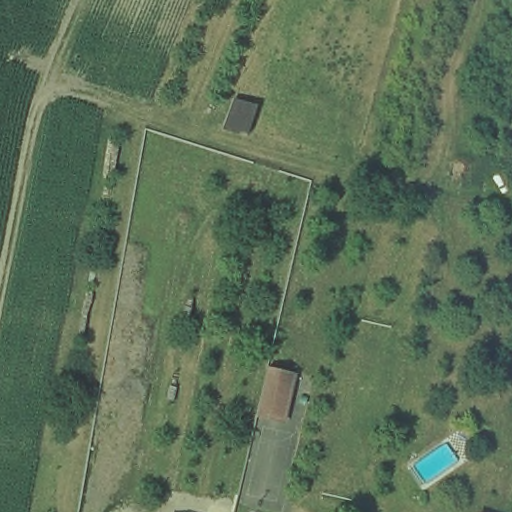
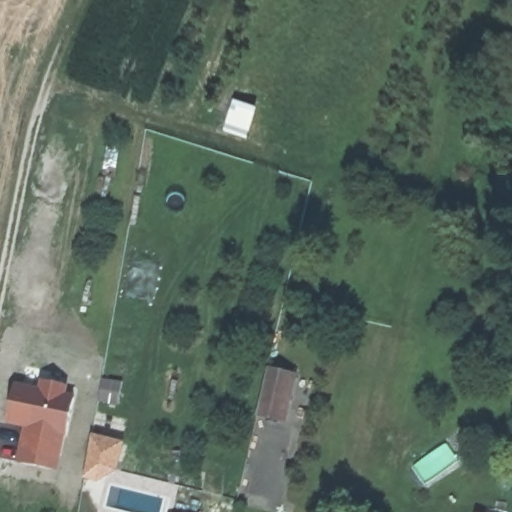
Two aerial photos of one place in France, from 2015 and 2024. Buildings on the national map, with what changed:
unchanged [(299,381),(289,425),(262,418),(270,381),(272,374),(299,381)]
new [(100,377),(122,382),(117,406),(95,401),(100,377)]
new [(38,388),(40,382),(71,388),(70,393),(75,396),(60,472),(17,463),(24,430),(7,425),(11,385),(38,388)]
new [(125,442),(119,472),(100,483),(87,481),(90,436),(125,442)]

